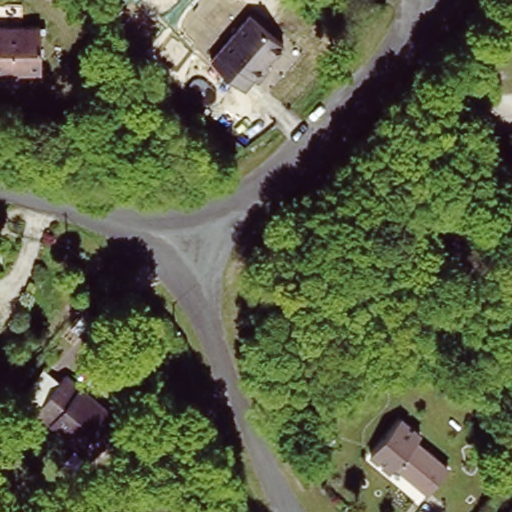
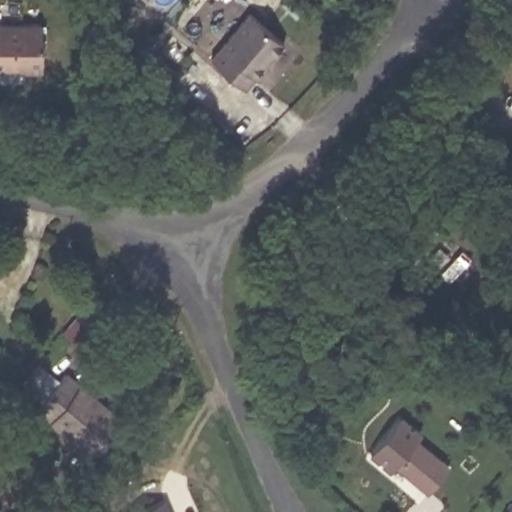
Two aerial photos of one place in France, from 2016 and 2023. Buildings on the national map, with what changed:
unchanged [(289,40),(270,59),(275,63),(264,75),(260,71),(249,83),(217,54),(257,10),(289,40)]
unchanged [(44,64),(27,65),(27,61),(0,64),(0,19),(42,19),(44,64)]
unchanged [(479,228),(467,241),(439,215),(450,202),(479,228)]
unchanged [(392,375),(380,389),(370,380),(382,366),(392,375)]
unchanged [(116,420),(87,454),(34,408),(64,374),(116,420)]
unchanged [(419,438),(413,445),(445,474),(425,495),(395,467),(390,473),(370,456),(400,420),(419,438)]
unchanged [(172,512),(141,512),(167,501),(172,512)]
unchanged [(506,512),(512,505),(512,512),(506,512)]

